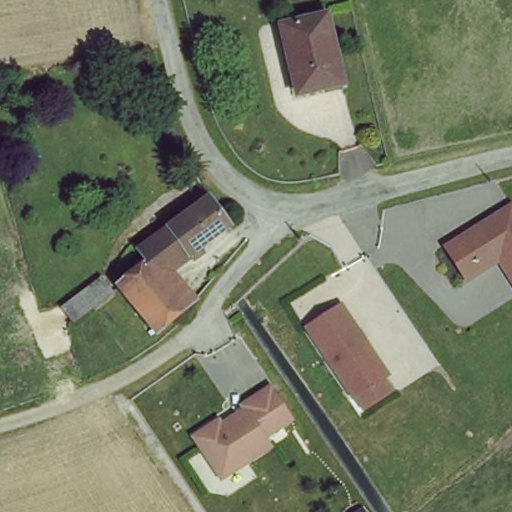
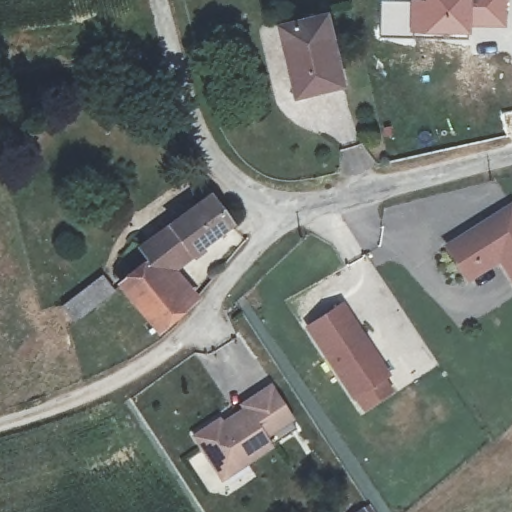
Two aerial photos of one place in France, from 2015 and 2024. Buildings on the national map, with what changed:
new [(380,0),(411,0),(411,34),(379,35),(380,0)]
new [(411,0),(508,0),(508,26),(473,25),(472,33),(411,34),(411,0)]
unchanged [(346,88),(299,98),(285,29),(333,20),(346,88)]
unchanged [(238,227),(171,284),(194,314),(163,339),(128,300),(161,271),(154,259),(198,223),(194,212),(215,195),(238,227)]
unchanged [(469,274),(448,242),(512,202),(512,271),(501,254),(469,274)]
unchanged [(103,308),(80,327),(65,311),(99,280),(115,298),(103,308)]
unchanged [(358,405),(349,392),(302,321),(335,300),(367,349),(364,351),(379,373),(387,386),(358,405)]
unchanged [(287,418),(261,435),(267,444),(219,476),(191,433),(208,422),(211,426),(241,407),(239,403),(266,385),(287,418)]

